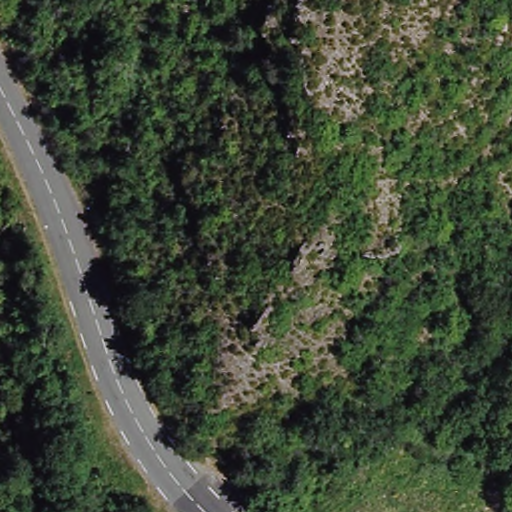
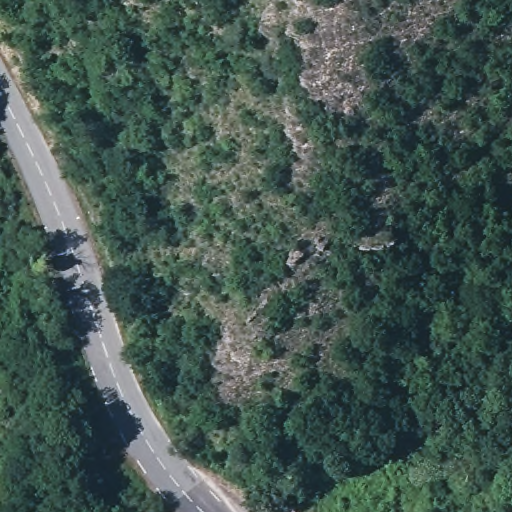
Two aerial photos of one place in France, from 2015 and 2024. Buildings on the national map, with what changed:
[]

